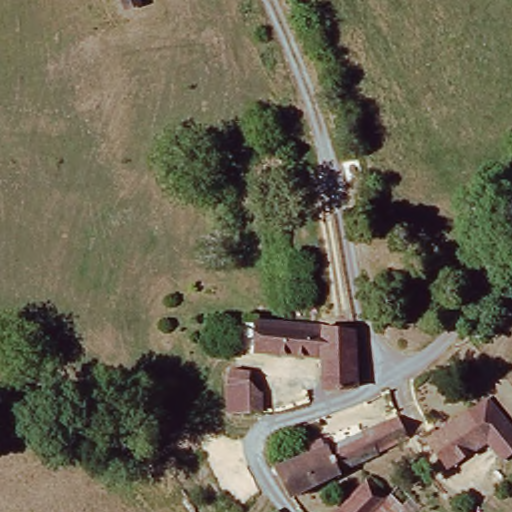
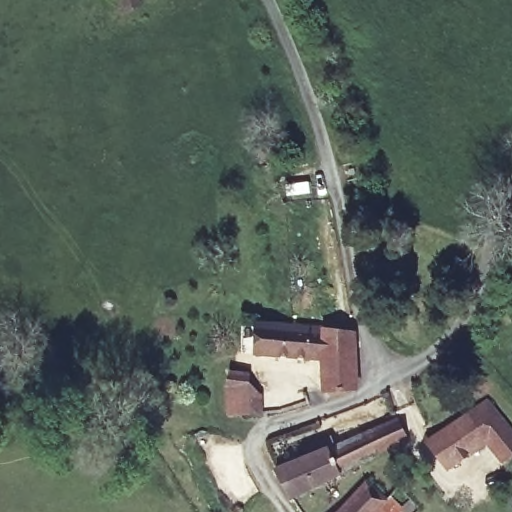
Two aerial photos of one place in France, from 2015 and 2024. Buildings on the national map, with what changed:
unchanged [(254,355),(253,331),(272,330),(351,327),(353,325),(357,388),(320,391),(320,354),(254,355)]
unchanged [(231,373),(255,374),(257,384),(261,385),(261,411),(227,413),(231,373)]
unchanged [(496,404),(512,436),(512,453),(501,458),(488,439),(473,414),(496,404)]
unchanged [(425,442),(473,414),(488,439),(443,467),(425,442)]
unchanged [(391,420),(407,447),(295,497),(278,464),(391,420)]
unchanged [(401,507),(407,500),(416,509),(414,512),(334,512),(365,479),(401,507)]

